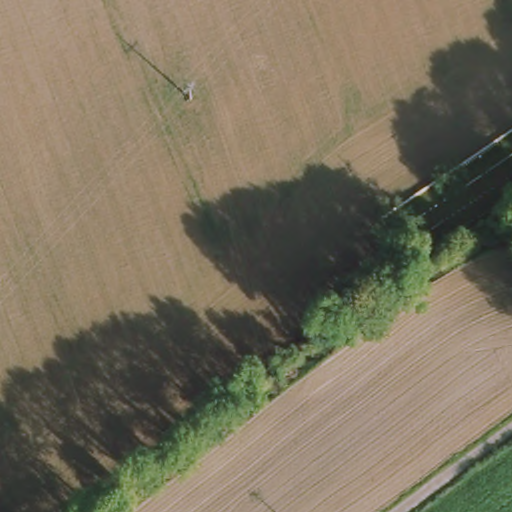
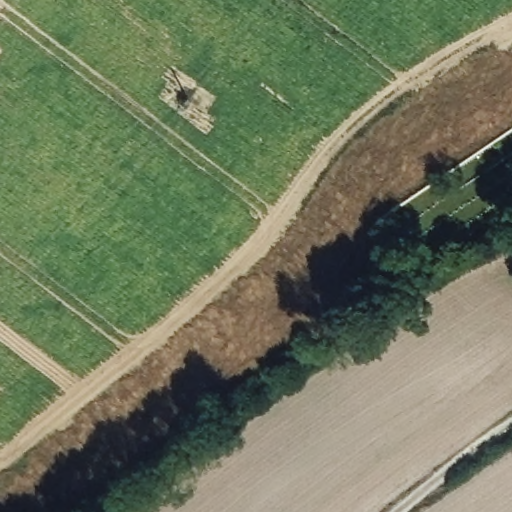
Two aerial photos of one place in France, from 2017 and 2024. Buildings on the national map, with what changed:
[]

